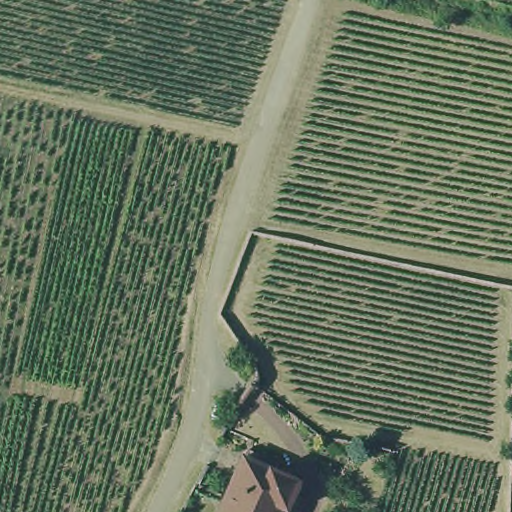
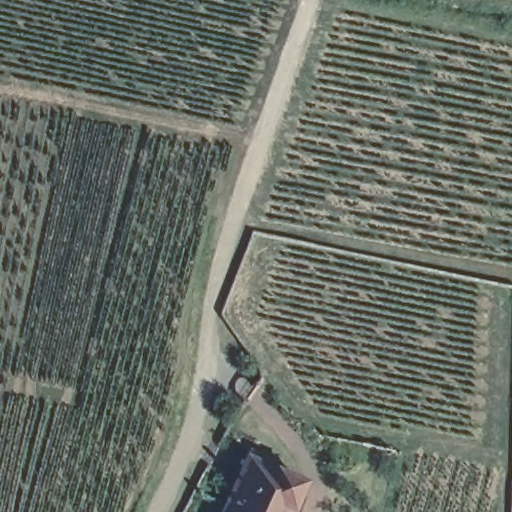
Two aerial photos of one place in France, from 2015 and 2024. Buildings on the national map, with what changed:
unchanged [(252,448),(256,438),(288,452),(285,462),(311,474),(307,484),(295,512),(225,512),(252,448)]
unchanged [(316,488),(306,512),(295,512),(307,484),(316,488)]

